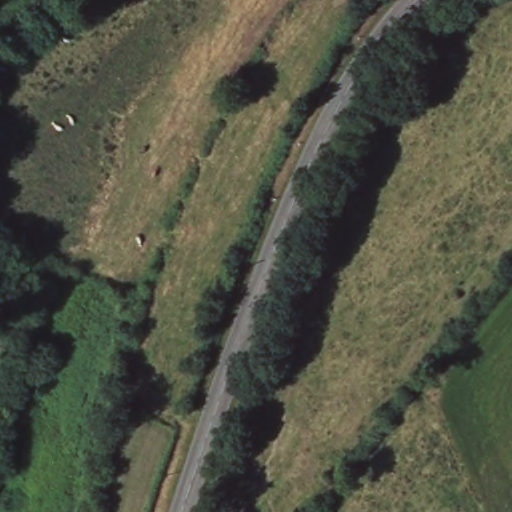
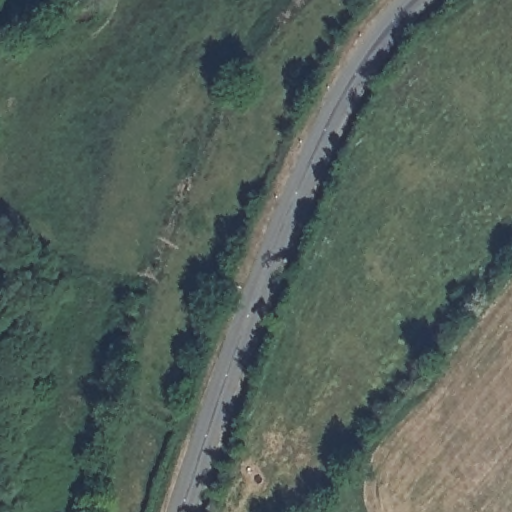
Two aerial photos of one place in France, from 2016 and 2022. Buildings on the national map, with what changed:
[]

